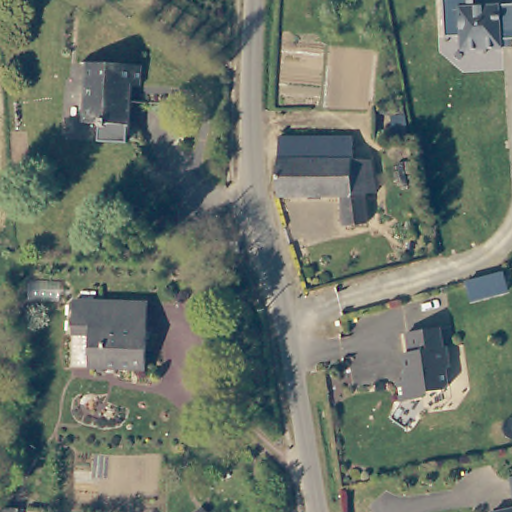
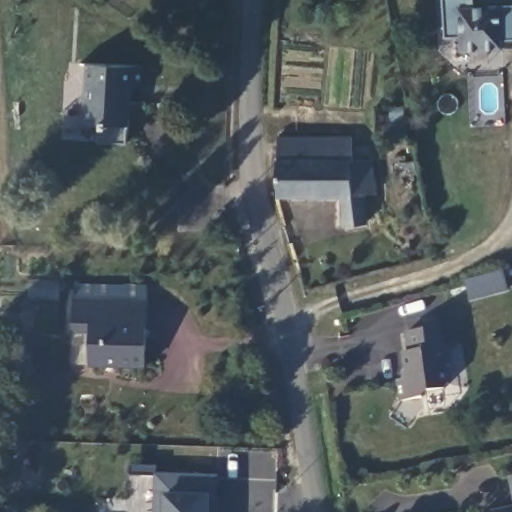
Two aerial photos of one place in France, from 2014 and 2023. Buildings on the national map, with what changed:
unchanged [(512,49),(462,51),(461,37),(445,37),(444,0),(474,0),(475,5),(512,4),(512,39),(512,49)]
unchanged [(123,123),(81,120),(84,59),(136,62),(136,84),(122,84),(121,98),(125,98),(123,123)]
unchanged [(355,140),(354,163),(375,165),(373,198),(366,197),(364,227),(341,226),(342,197),(274,194),(276,158),(277,136),(351,140),(355,140)]
unchanged [(82,300),(154,306),(151,373),(95,369),(96,336),(79,335),(82,300)]
unchanged [(402,352),(409,350),(406,332),(440,326),(443,345),(446,344),(450,366),(447,367),(450,387),(424,391),(425,397),(400,400),(397,378),(406,377),(402,352)]
unchanged [(491,510),(512,505),(506,475),(512,474),(512,512),(491,512),(491,510)]
new [(217,478),(217,499),(212,499),(212,512),(156,512),(157,476),(217,478)]

